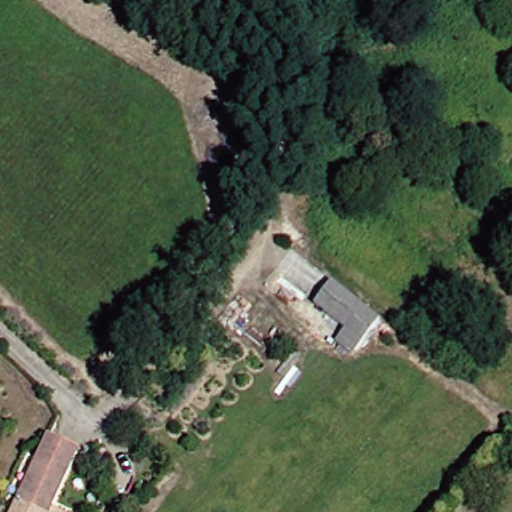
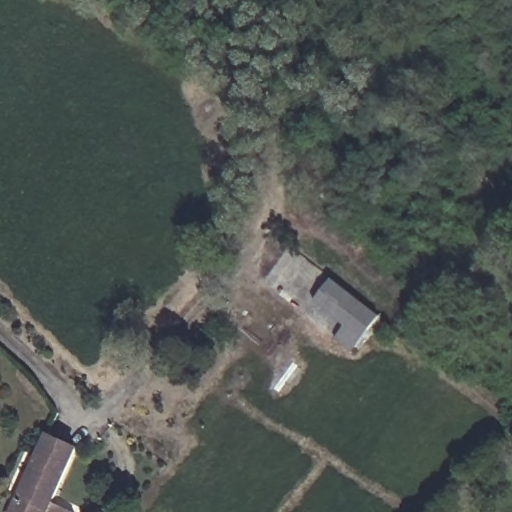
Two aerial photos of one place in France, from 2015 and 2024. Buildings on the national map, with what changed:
unchanged [(380,316),(352,352),(334,337),(342,326),(312,303),(330,277),(380,316)]
unchanged [(10,491),(38,434),(63,446),(66,448),(37,505),(32,502),(10,491)]

